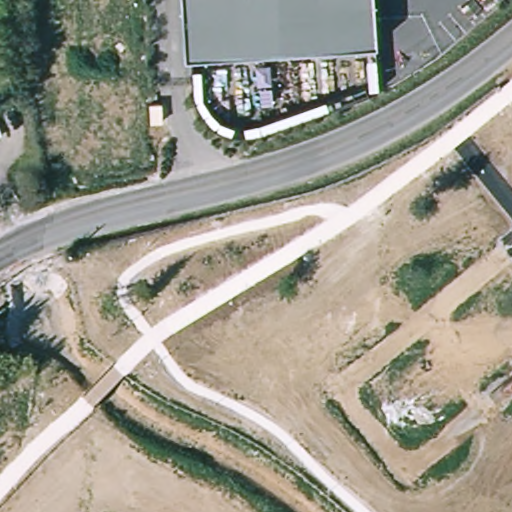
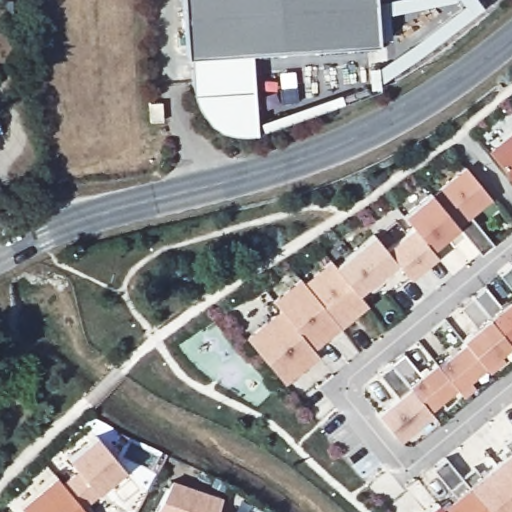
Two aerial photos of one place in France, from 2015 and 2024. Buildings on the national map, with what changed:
unchanged [(183,56),(180,0),(372,0),(375,42),(183,56)]
new [(238,133),(221,130),(210,122),(196,103),(192,92),(191,55),(250,51),(256,132),(238,133)]
new [(512,136),(512,183),(489,155),(512,136)]
new [(431,196),(465,167),(491,199),(470,216),(493,245),(479,256),(465,238),(431,196)]
new [(452,248),(444,237),(429,250),(404,218),(431,196),(465,238),(452,248)]
new [(374,238),(400,269),(371,293),(366,287),(357,295),(336,269),(374,238)]
new [(357,295),(367,306),(339,329),(301,282),(328,260),(336,269),(357,295)]
new [(511,264),(512,266),(512,292),(498,275),(511,264)]
new [(301,282),(339,329),(313,351),(282,313),(274,304),(301,282)]
new [(460,308),(486,286),(501,306),(512,297),(512,340),(510,341),(511,343),(457,389),(455,387),(428,409),(408,384),(435,361),(437,363),(463,341),(462,338),(477,326),(460,308)]
new [(282,313),(313,351),(318,357),(284,385),(248,341),(282,313)]
new [(408,384),(428,409),(431,413),(398,439),(375,412),(394,396),(377,374),(403,353),(418,375),(408,384)]
new [(80,475),(70,463),(98,439),(125,471),(98,494),(100,497),(83,510),(64,488),(80,475)]
new [(511,454),(504,445),(512,439),(512,486),(497,466),(511,454)]
new [(441,506),(454,495),(433,469),(445,458),(467,484),(489,512),(445,512),(441,506)]
new [(479,475),(493,462),(497,466),(512,486),(512,512),(489,512),(467,484),(461,477),(473,467),(479,475)]
new [(60,482),(64,488),(83,510),(84,512),(24,512),(60,482)]
new [(172,484),(222,501),(218,512),(157,512),(172,484)]
new [(446,512),(423,512),(437,501),(441,506),(446,512)]

